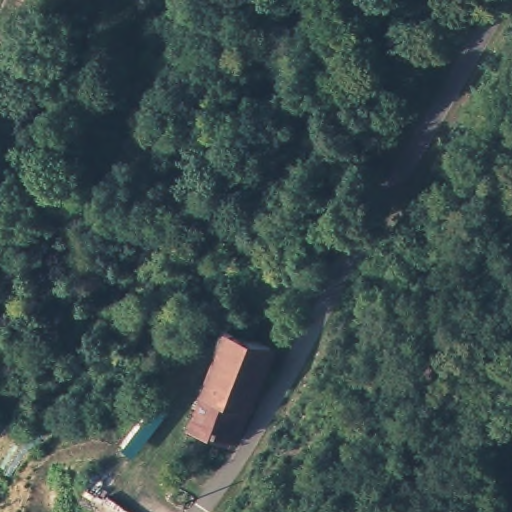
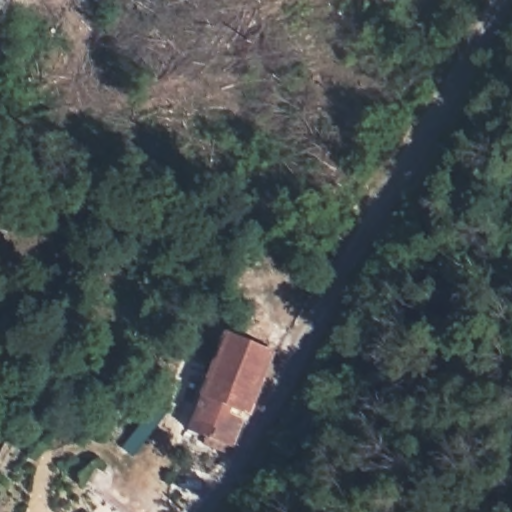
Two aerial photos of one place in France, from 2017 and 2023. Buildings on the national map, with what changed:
unchanged [(184,435),(219,336),(265,354),(225,449),(184,435)]

